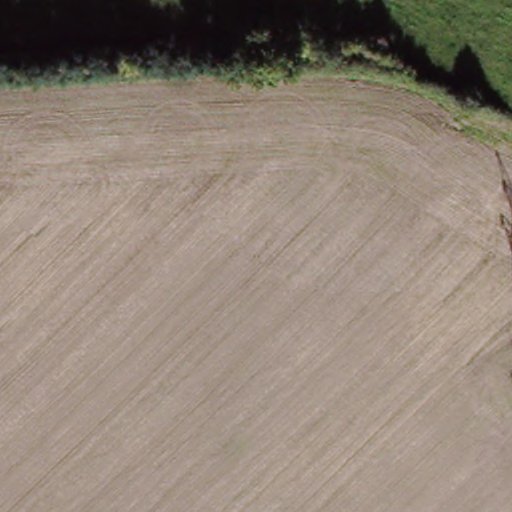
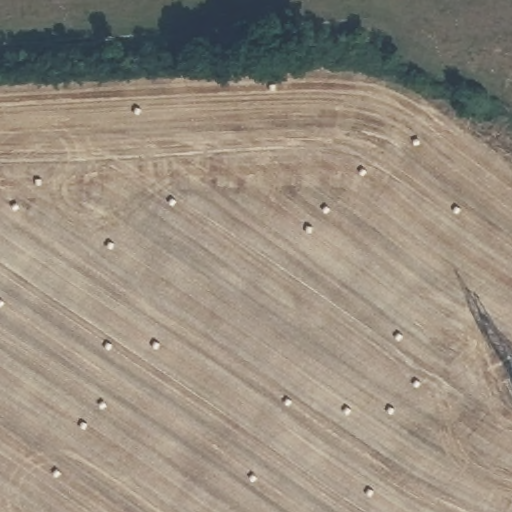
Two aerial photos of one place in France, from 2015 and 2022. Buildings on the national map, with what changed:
[]

